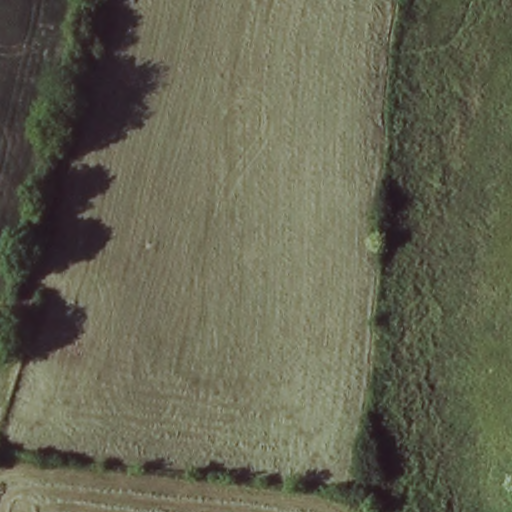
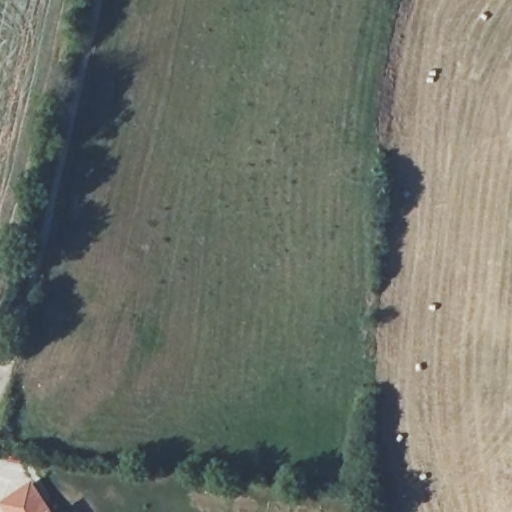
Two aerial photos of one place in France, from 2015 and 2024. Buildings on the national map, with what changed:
new [(61,512),(12,512),(1,498),(35,478),(61,512)]

